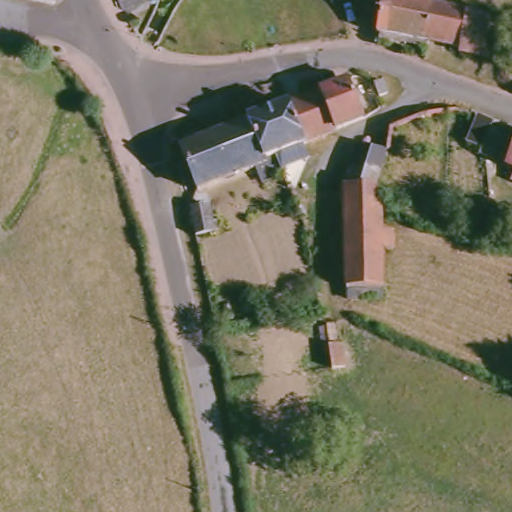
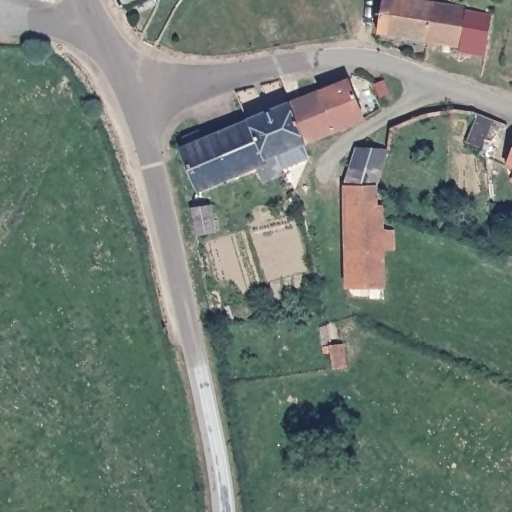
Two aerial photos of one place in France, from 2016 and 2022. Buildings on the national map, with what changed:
unchanged [(138,0),(129,5),(126,0),(138,0)]
unchanged [(465,45),(380,35),(384,0),(446,0),(471,3),(474,12),(469,12),(465,45)]
unchanged [(464,53),(465,45),(469,12),(474,12),(502,16),(497,59),(464,53)]
unchanged [(328,86),(350,76),(369,117),(346,127),(328,86)]
unchanged [(374,82),(380,95),(373,100),(365,85),(374,82)]
unchanged [(293,102),(328,86),(346,127),(311,143),(293,102)]
unchanged [(295,161),(291,151),(274,159),(258,117),(293,102),(311,143),(309,144),(313,153),(295,161)]
unchanged [(255,185),(249,170),(202,191),(185,150),(193,146),(190,137),(206,130),(210,139),(245,123),(258,117),(274,159),(268,161),(275,176),(255,185)]
unchanged [(478,126),(497,132),(488,167),(471,162),(478,126)]
unchanged [(351,184),(354,165),(360,135),(374,138),(390,141),(385,171),(384,177),(383,188),(351,184)]
unchanged [(380,227),(389,246),(391,290),(355,295),(350,187),(351,184),(383,188),(382,196),(380,227)]
unchanged [(192,204),(216,200),(219,227),(197,232),(192,204)]
unchanged [(329,375),(328,345),(345,345),(350,375),(329,375)]

